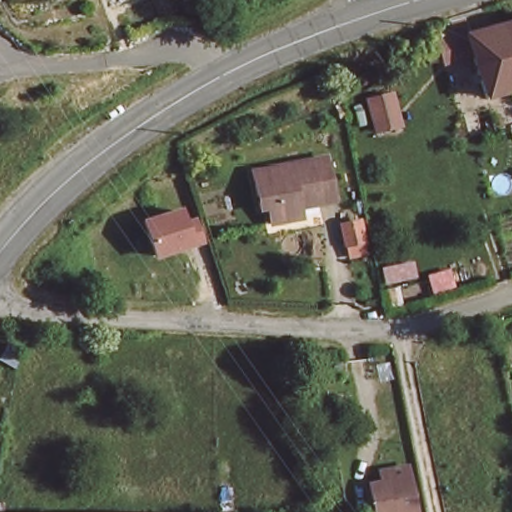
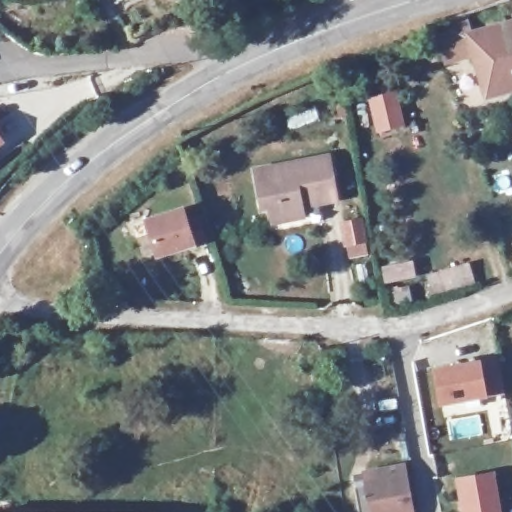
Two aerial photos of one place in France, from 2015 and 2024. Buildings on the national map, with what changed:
unchanged [(506,22),(512,21),(512,45),(506,22)]
unchanged [(445,55),(441,42),(473,32),(506,22),(512,45),(512,85),(490,92),(477,45),(445,55)]
unchanged [(368,83),(391,80),(396,112),(374,116),(368,83)]
new [(6,142),(0,146),(0,134),(6,142)]
unchanged [(322,205),(322,200),(301,205),(303,220),(273,225),(270,212),(262,214),(257,175),(326,160),(336,201),(322,205)]
unchanged [(180,214),(184,227),(197,222),(204,244),(155,260),(144,225),(180,214)]
new [(487,398),(440,405),(433,367),(480,359),(487,398)]
unchanged [(414,512),(375,512),(369,486),(366,474),(377,472),(404,466),(414,512)]
new [(490,472),(496,512),(461,512),(456,478),(490,472)]

